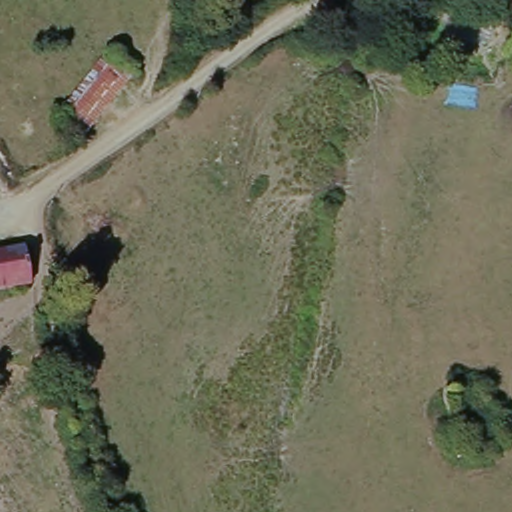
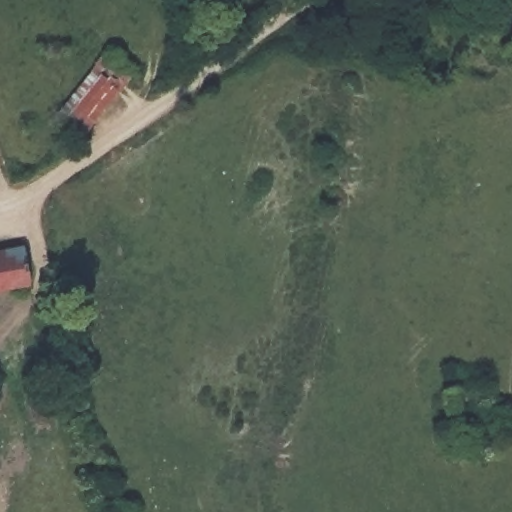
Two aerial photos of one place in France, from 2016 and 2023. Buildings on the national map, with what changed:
unchanged [(48,122),(103,64),(126,85),(74,146),(48,122)]
unchanged [(0,291),(0,252),(21,248),(29,285),(0,291)]

